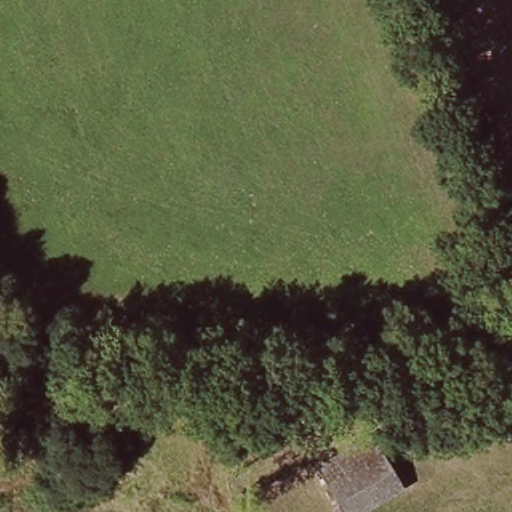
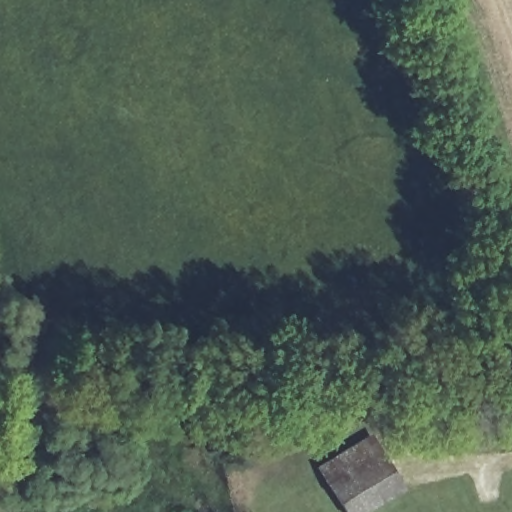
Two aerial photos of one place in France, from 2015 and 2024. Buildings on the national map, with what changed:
unchanged [(369,446),(398,494),(368,512),(346,512),(322,472),(369,446)]

